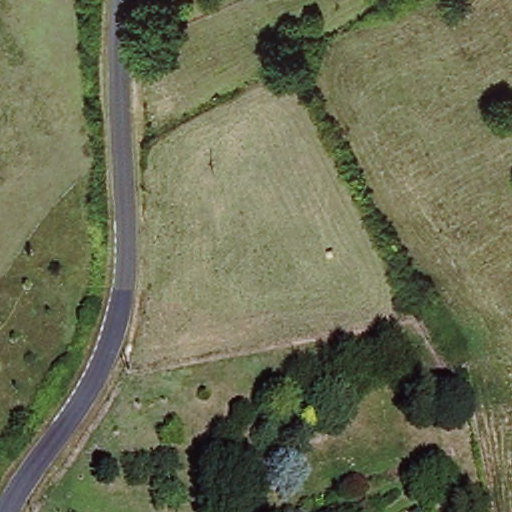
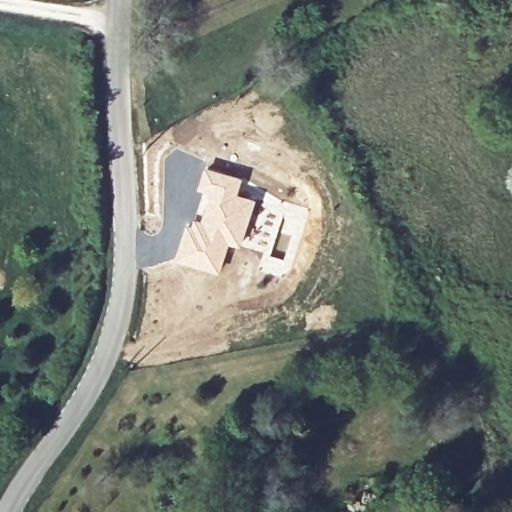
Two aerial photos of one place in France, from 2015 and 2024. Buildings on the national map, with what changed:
new [(187,221),(191,223),(202,191),(196,189),(205,164),(244,177),(239,193),(256,199),(240,248),(229,244),(220,274),(174,260),(187,221)]

